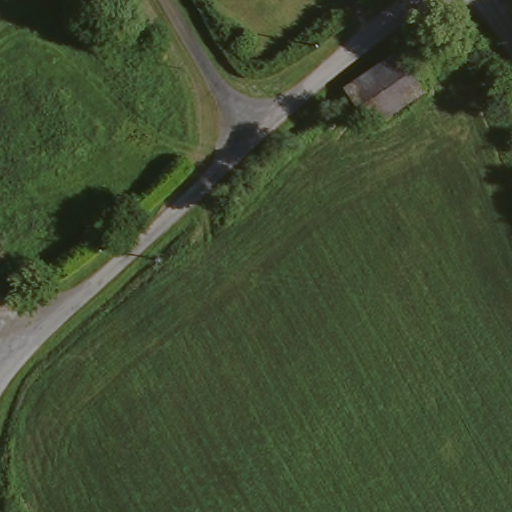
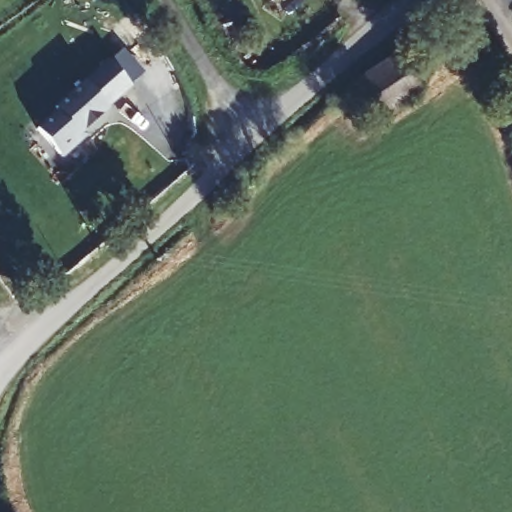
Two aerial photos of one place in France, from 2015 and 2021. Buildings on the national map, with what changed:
unchanged [(386,55),(414,95),(414,96),(363,130),(333,90),(386,55)]
new [(60,108),(58,105),(110,58),(133,83),(109,105),(110,107),(79,134),(83,138),(64,155),(39,127),(60,108)]

